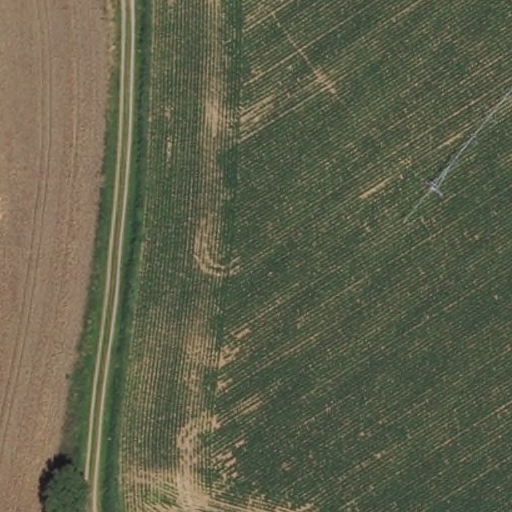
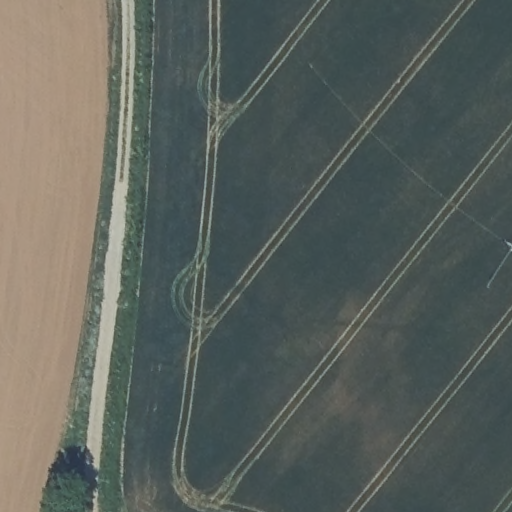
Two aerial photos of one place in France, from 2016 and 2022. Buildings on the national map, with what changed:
[]

